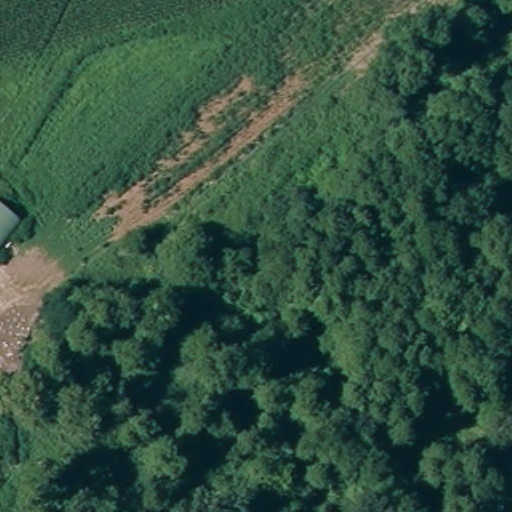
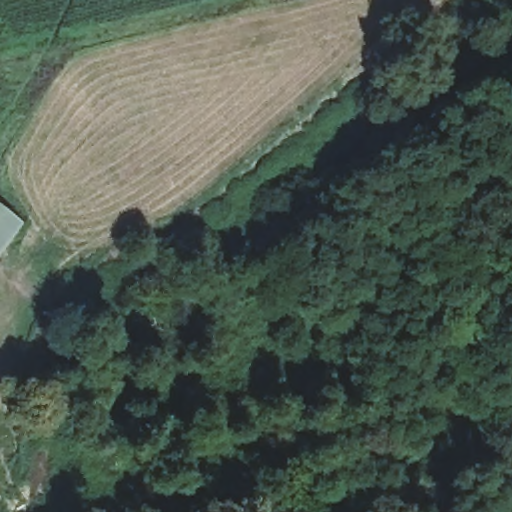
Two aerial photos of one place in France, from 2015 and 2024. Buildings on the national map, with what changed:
unchanged [(0,247),(0,206),(19,222),(0,247)]

